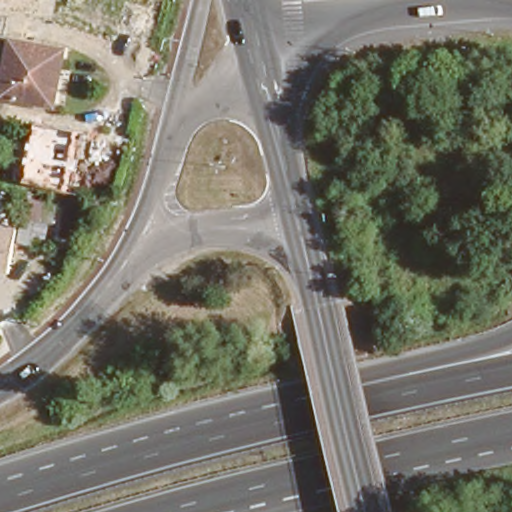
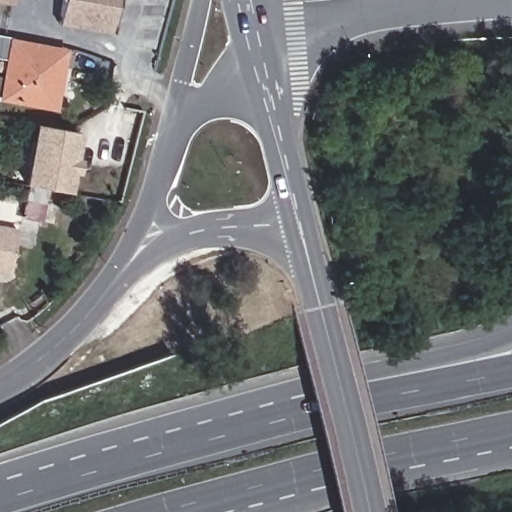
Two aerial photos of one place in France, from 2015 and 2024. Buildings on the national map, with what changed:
unchanged [(11,4),(0,1),(0,0),(12,0),(11,4)]
new [(63,0),(118,0),(112,34),(59,25),(63,0)]
unchanged [(1,97),(13,41),(64,51),(59,71),(55,70),(46,106),(1,97)]
new [(80,133),(75,159),(80,160),(77,174),(71,172),(67,193),(23,185),(33,125),(80,133)]
unchanged [(10,275),(0,274),(0,226),(19,229),(10,275)]

